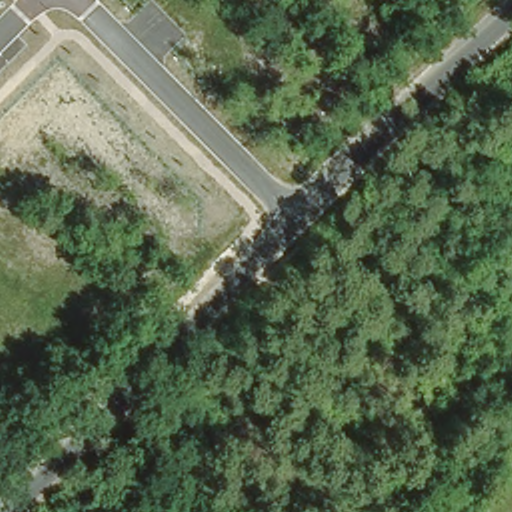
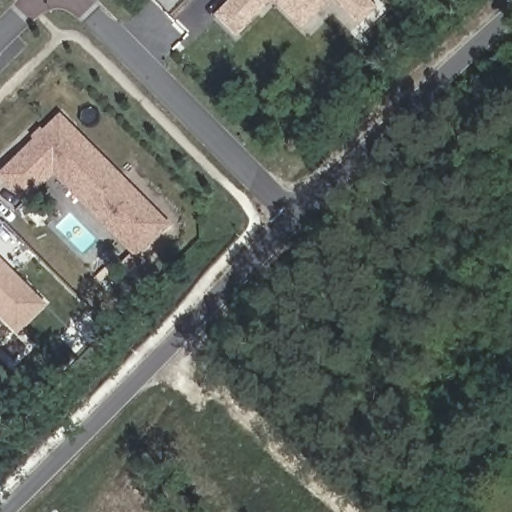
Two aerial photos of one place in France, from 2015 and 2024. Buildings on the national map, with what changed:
new [(236,37),(213,15),(229,0),(329,0),(300,28),(272,0),(236,37)]
new [(377,7),(357,24),(331,0),(370,0),(377,7)]
new [(133,253),(51,170),(43,177),(22,198),(10,186),(0,176),(0,171),(57,114),(164,222),(133,253)]
new [(36,304),(14,327),(0,313),(0,268),(36,304)]

